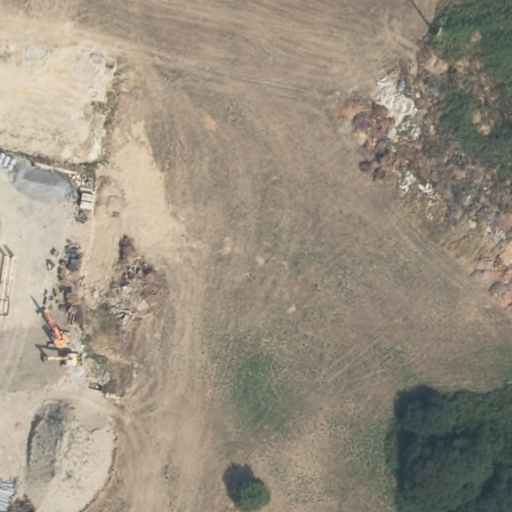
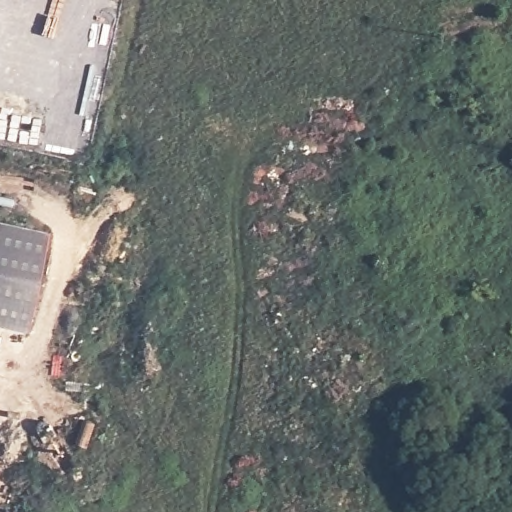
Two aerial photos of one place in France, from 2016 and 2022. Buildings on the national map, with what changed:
new [(0,219),(47,229),(27,327),(0,322),(0,219)]

